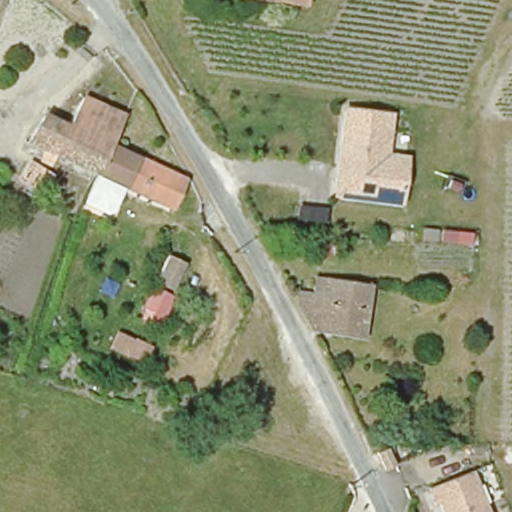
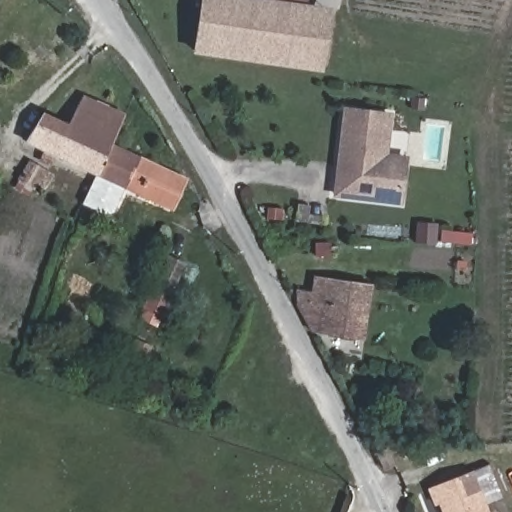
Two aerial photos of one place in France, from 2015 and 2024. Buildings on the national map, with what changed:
new [(248,0),(260,2),(301,10),(302,4),(332,7),(322,72),(193,54),(202,0),(248,0)]
unchanged [(248,0),(260,0),(260,2),(248,0)]
unchanged [(303,0),(301,10),(260,2),(260,0),(303,0)]
unchanged [(96,171),(28,140),(46,112),(71,125),(85,95),(125,115),(111,143),(96,171)]
unchanged [(401,203),(335,196),(345,110),(390,115),(385,150),(385,156),(405,159),(404,175),(401,203)]
unchanged [(187,180),(174,209),(125,185),(114,210),(106,211),(85,201),(99,172),(96,171),(111,143),(187,180)]
unchanged [(43,179),(32,194),(21,187),(32,171),(43,179)]
unchanged [(333,255),(325,255),(325,247),(333,248),(333,255)]
unchanged [(155,286),(160,273),(167,260),(185,267),(178,281),(172,294),(155,286)]
unchanged [(311,335),(307,327),(295,301),(298,301),(298,295),(315,295),(316,278),(329,277),(372,277),(367,328),(367,335),(311,335)]
unchanged [(170,298),(159,321),(145,315),(155,292),(170,298)]
unchanged [(112,347),(119,333),(146,346),(147,346),(141,360),(139,360),(112,347)]
unchanged [(383,460),(373,465),(368,452),(367,451),(377,446),(383,460)]
unchanged [(488,512),(443,512),(440,506),(436,508),(429,491),(470,473),(488,512)]

